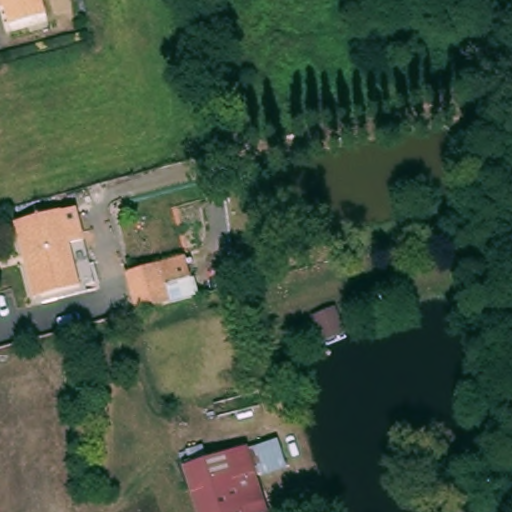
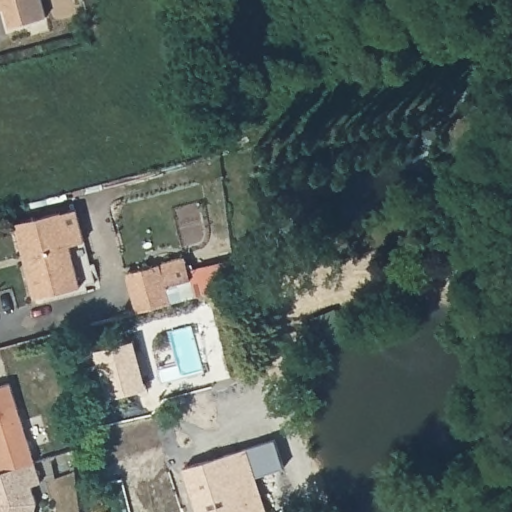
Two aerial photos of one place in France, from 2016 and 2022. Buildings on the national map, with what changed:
unchanged [(6,28),(0,5),(0,0),(42,0),(47,18),(6,28)]
unchanged [(22,265),(14,230),(75,217),(90,214),(97,246),(82,249),(91,286),(76,290),(78,296),(43,304),(31,306),(22,265)]
unchanged [(196,257),(202,281),(177,287),(182,304),(143,313),(133,273),(196,257)]
unchanged [(342,302),(353,331),(325,340),(316,313),(342,302)]
new [(10,381),(35,460),(0,471),(0,384),(10,381)]
unchanged [(253,448),(272,512),(204,512),(191,467),(253,448)]
new [(35,460),(41,480),(31,483),(37,501),(34,512),(0,512),(0,471),(35,460)]

